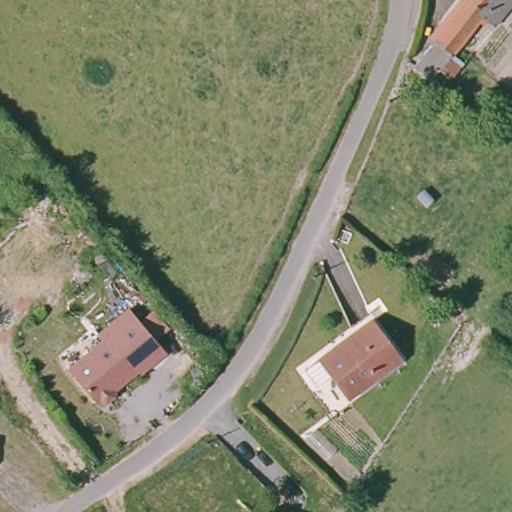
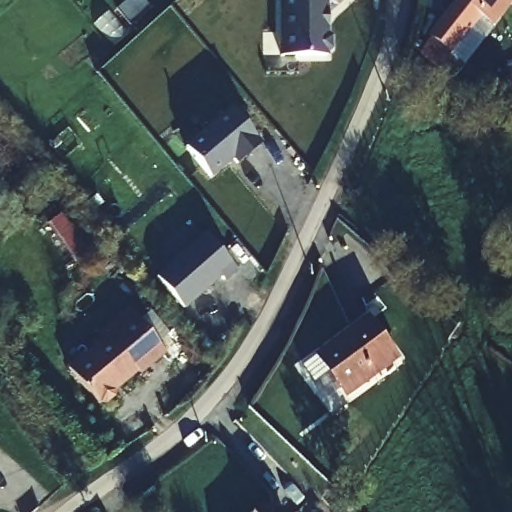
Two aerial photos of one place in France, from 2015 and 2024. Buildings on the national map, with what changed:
new [(326,33),(330,36),(330,48),(326,51),(326,55),(280,56),(280,0),(326,0),(326,33)]
unchanged [(487,19),(475,10),(465,20),(458,29),(440,50),(423,34),(421,31),(446,0),(503,0),(487,19)]
unchanged [(423,34),(440,50),(449,60),(420,91),(393,67),(423,34)]
new [(231,108),(260,143),(237,163),(232,158),(210,177),(185,147),(231,108)]
new [(78,267),(47,223),(60,213),(83,244),(98,253),(78,267)]
new [(155,277),(204,234),(237,270),(225,282),(220,277),(184,310),(155,277)]
unchanged [(77,343),(72,337),(103,312),(140,355),(113,377),(111,374),(87,394),(87,399),(78,406),(73,406),(70,408),(41,372),(77,343)]
unchanged [(302,365),(317,355),(368,317),(397,357),(345,394),(329,371),(314,381),(302,365)]
unchanged [(266,512),(258,512),(262,508),(266,512)]

